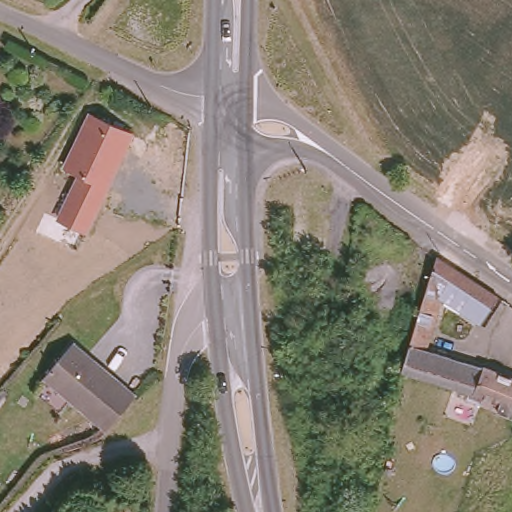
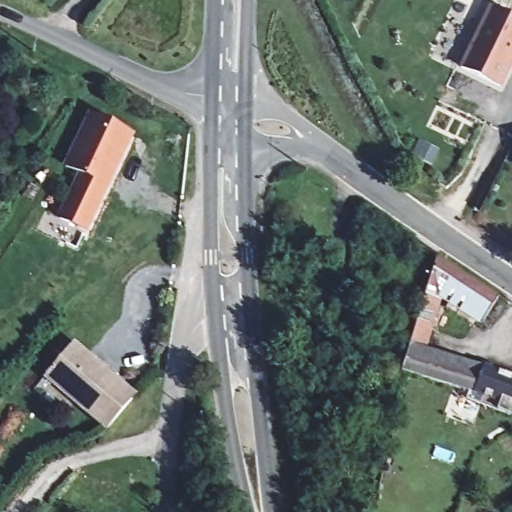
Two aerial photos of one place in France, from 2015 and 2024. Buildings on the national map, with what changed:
new [(512,54),(495,86),(459,70),(490,8),(512,20),(512,54)]
unchanged [(65,214),(85,169),(70,163),(95,111),(135,129),(90,226),(65,214)]
unchanged [(498,293),(485,313),(482,316),(479,318),(475,318),(439,293),(427,286),(425,285),(435,252),(498,293)]
unchanged [(468,387),(400,366),(425,285),(427,286),(439,293),(437,300),(424,345),(484,364),(485,363),(512,373),(512,412),(465,395),(468,387)]
unchanged [(106,430),(44,377),(72,343),(135,395),(106,430)]

